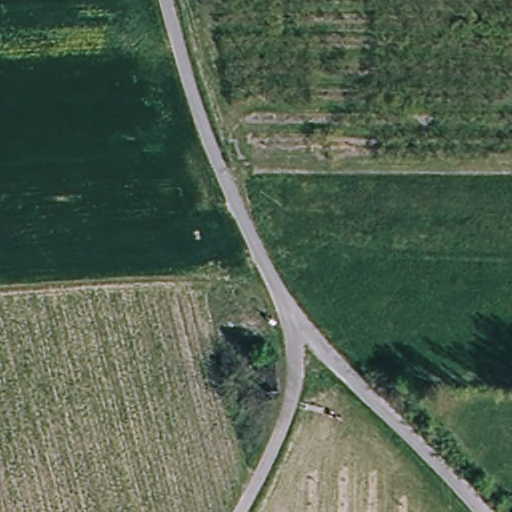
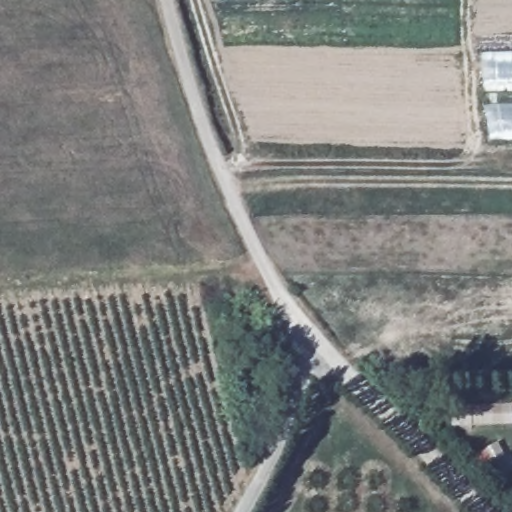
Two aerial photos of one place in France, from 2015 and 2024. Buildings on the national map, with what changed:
new [(483,53),(512,53),(512,88),(483,88),(483,53)]
new [(486,106),(512,106),(512,140),(486,140),(486,106)]
unchanged [(276,360),(277,389),(251,390),(249,361),(276,360)]

